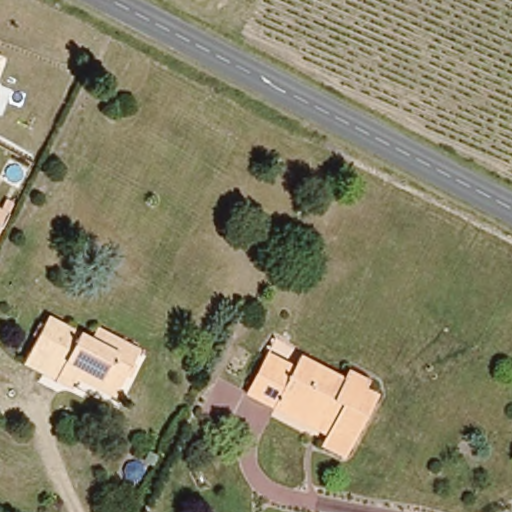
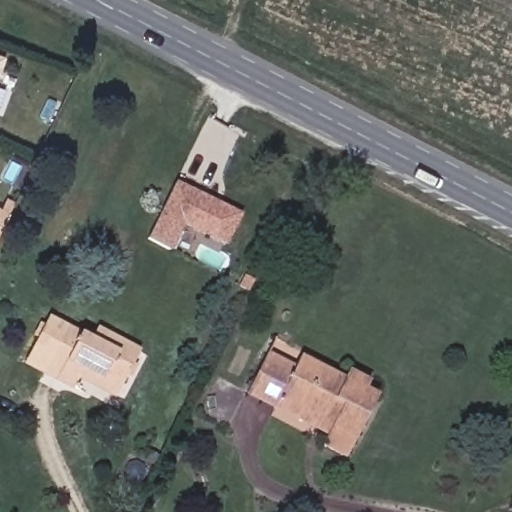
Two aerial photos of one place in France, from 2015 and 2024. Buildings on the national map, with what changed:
unchanged [(0,73),(0,54),(6,56),(0,73)]
new [(173,242),(157,235),(156,239),(149,235),(176,181),(240,212),(224,246),(177,222),(173,242)]
unchanged [(2,209),(7,199),(15,202),(0,235),(0,207),(2,209)]
unchanged [(83,371),(78,380),(25,354),(48,311),(91,333),(97,321),(139,343),(122,377),(117,387),(83,371)]
unchanged [(246,392),(265,353),(292,366),(298,356),(342,377),(347,368),(377,383),(345,457),(322,445),(328,431),(274,405),(246,392)]

